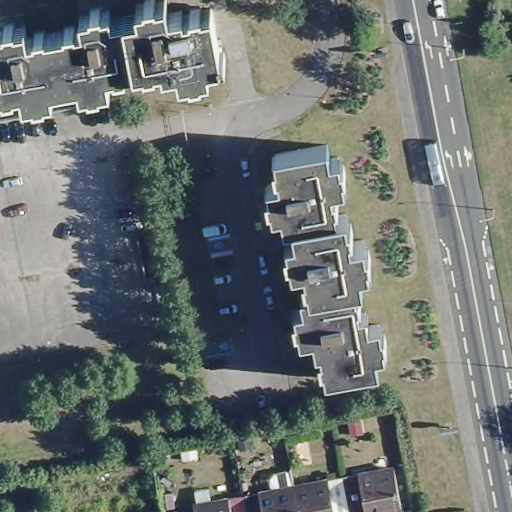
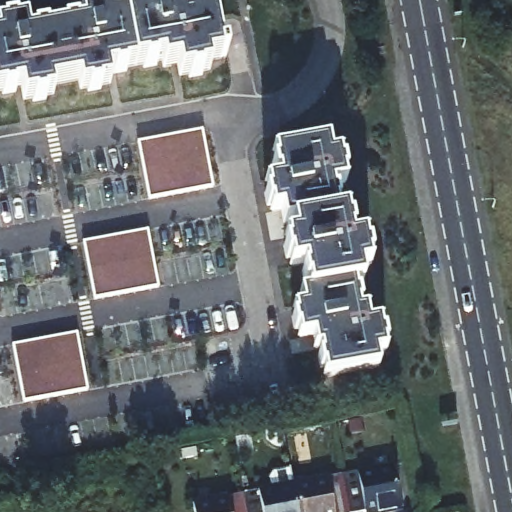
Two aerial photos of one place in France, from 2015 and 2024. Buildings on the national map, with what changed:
unchanged [(182,6),(183,10),(212,5),(222,65),(209,67),(211,76),(181,82),(179,67),(164,70),(164,66),(110,75),(112,85),(82,91),(80,81),(55,86),(57,96),(27,101),(24,91),(1,95),(0,92),(0,36),(1,36),(0,33),(0,24),(27,20),(29,31),(82,21),(81,10),(111,5),(112,15),(137,11),(135,0),(164,0),(166,9),(182,6)]
new [(212,187),(149,198),(137,144),(202,132),(212,187)]
unchanged [(327,143),(329,154),(340,151),(346,181),(334,183),(339,213),(346,211),(352,240),(367,238),(372,265),(362,266),(365,282),(360,283),(366,315),(372,314),(375,330),(392,327),(397,357),(385,359),(387,375),(332,385),(325,353),(319,354),(316,338),(302,340),(297,310),(309,308),(306,293),(311,292),(305,261),(291,263),(287,237),(300,234),(297,221),(287,223),(283,207),(274,209),(269,182),(277,181),(272,153),(327,143)]
new [(159,288),(95,299),(82,242),(147,231),(159,288)]
new [(87,390),(23,402),(11,346),(77,334),(87,390)]
unchanged [(393,465),(401,509),(386,512),(368,512),(368,511),(363,512),(351,512),(343,475),(393,465)]
unchanged [(343,475),(351,512),(298,512),(292,484),(343,475)]
unchanged [(292,484),(298,512),(245,512),(242,494),(292,484)]
unchanged [(197,502),(194,491),(207,488),(209,500),(242,494),(245,512),(194,512),(192,503),(197,502)]

